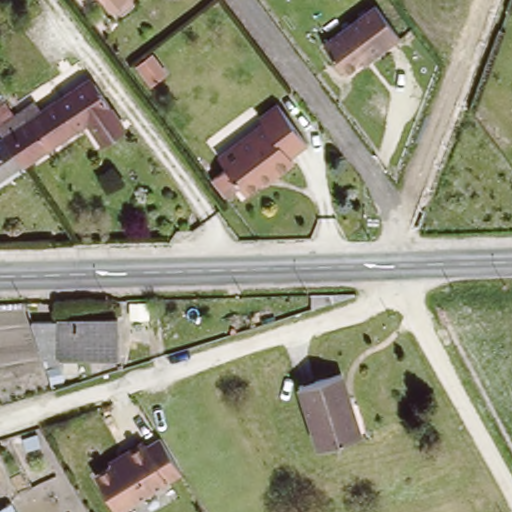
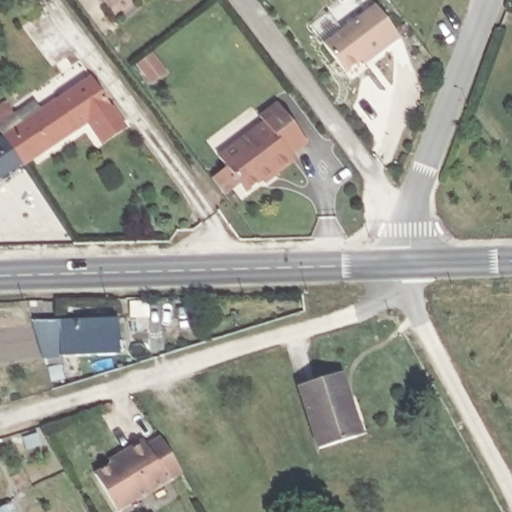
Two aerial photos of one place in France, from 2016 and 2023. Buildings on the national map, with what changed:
unchanged [(108,4),(105,0),(113,0),(108,4)]
unchanged [(374,0),(378,0),(403,35),(374,56),(371,51),(348,68),(324,36),(374,0)]
unchanged [(106,140),(103,134),(93,119),(25,161),(8,135),(0,122),(0,105),(11,98),(18,110),(38,96),(46,109),(97,76),(125,120),(129,125),(106,140)]
unchanged [(219,183),(213,174),(231,161),(225,154),(271,119),(264,110),(281,96),(306,129),(289,142),(298,154),(279,169),(274,163),(248,184),(243,178),(224,190),(219,183)]
unchanged [(25,161),(0,177),(0,141),(8,135),(25,161)]
unchanged [(364,290),(309,307),(308,291),(364,290)]
unchanged [(116,321),(117,354),(54,356),(30,324),(116,321)]
unchanged [(352,440),(324,450),(301,384),(339,371),(351,403),(362,436),(352,440)]
unchanged [(146,449),(164,439),(183,472),(118,508),(97,470),(143,446),(146,449)]
unchanged [(12,501),(18,512),(0,512),(0,506),(12,501)]

